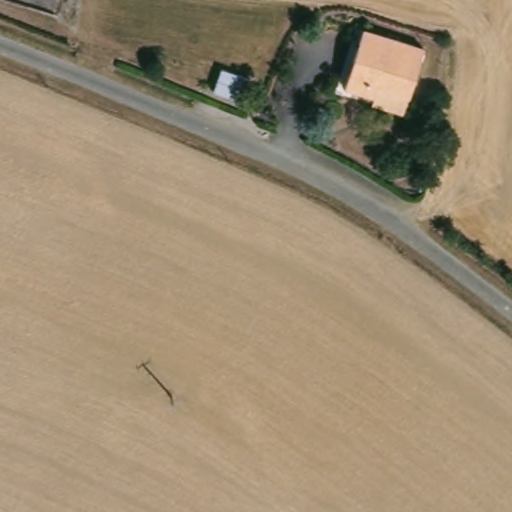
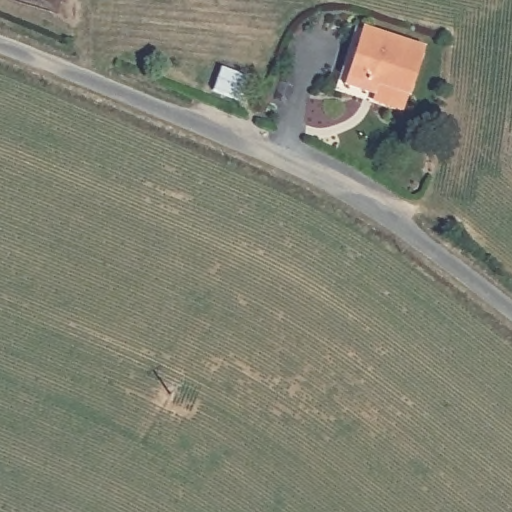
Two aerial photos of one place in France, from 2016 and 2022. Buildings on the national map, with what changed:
unchanged [(375,101),(375,98),(348,89),(364,34),(424,51),(409,99),(406,111),(375,101)]

